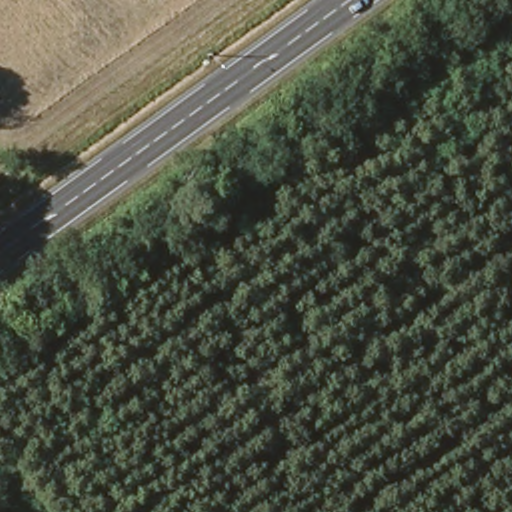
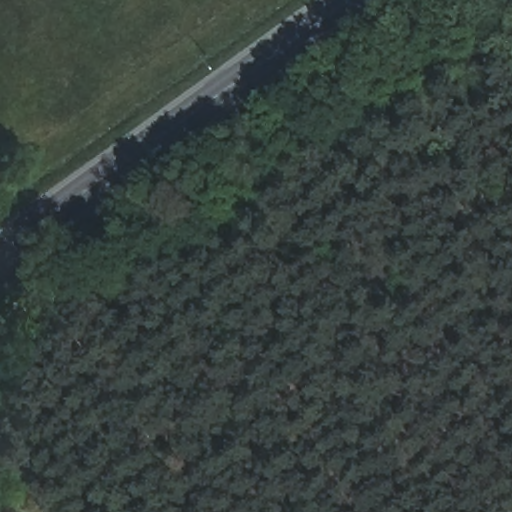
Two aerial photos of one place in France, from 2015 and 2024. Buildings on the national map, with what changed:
[]

